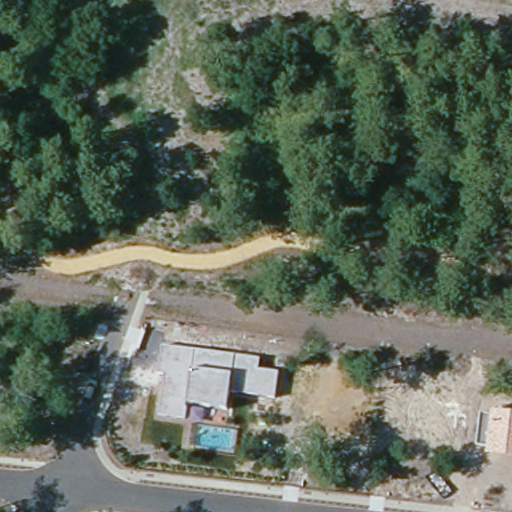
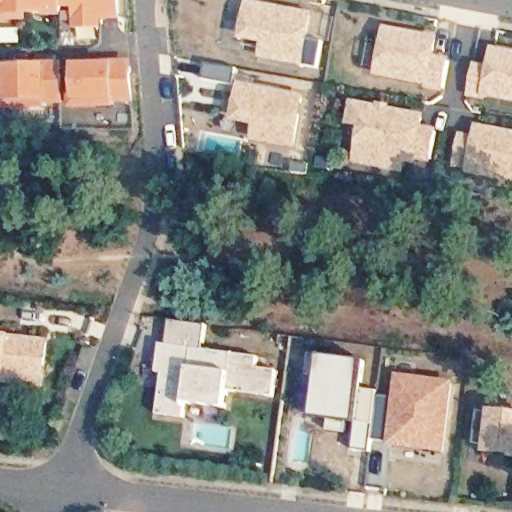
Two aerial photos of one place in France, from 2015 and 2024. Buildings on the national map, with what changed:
new [(76,9),(63,8),(63,19),(46,20),(46,14),(31,15),(31,22),(0,22),(0,0),(123,0),(123,20),(105,21),(105,31),(76,31),(76,9)]
new [(315,14),(311,38),(325,42),(319,70),(259,60),(262,45),(240,41),(248,1),(315,14)]
new [(441,36),(437,55),(451,58),(445,94),(426,90),(427,85),(376,76),(385,27),(441,36)]
new [(489,65),(493,46),(512,50),(512,102),(490,98),(489,102),(469,98),(475,64),(489,65)]
new [(117,104),(116,109),(71,109),(71,96),(78,95),(77,65),(116,64),(116,60),(135,60),(138,104),(117,104)]
new [(50,105),(50,109),(4,110),(2,82),(8,82),(8,67),(47,65),(47,62),(64,62),(66,105),(50,105)]
new [(307,96),(296,150),(252,142),(256,127),(233,122),(240,84),(307,96)]
new [(426,115),(424,126),(438,129),(431,165),(418,163),(416,175),(353,166),(360,129),(347,126),(352,102),(426,115)]
new [(475,135),(477,125),(512,131),(512,184),(467,175),(468,170),(455,168),(460,134),(475,135)]
new [(0,334),(14,335),(51,340),(46,389),(0,383),(0,334)]
unchanged [(230,395),(227,410),(187,404),(184,419),(160,416),(165,375),(158,375),(162,345),(259,358),(258,369),(278,371),(276,397),(230,395)]
new [(364,362),(360,390),(378,392),(378,397),(394,400),(396,374),(456,382),(449,455),(388,447),(388,442),(375,441),(377,426),(358,424),(358,420),(349,420),(348,435),(329,433),(331,420),(313,418),(319,378),(307,377),(310,356),(364,362)]
unchanged [(486,455),(487,447),(477,445),(481,412),(491,413),(512,415),(512,457),(486,455)]

